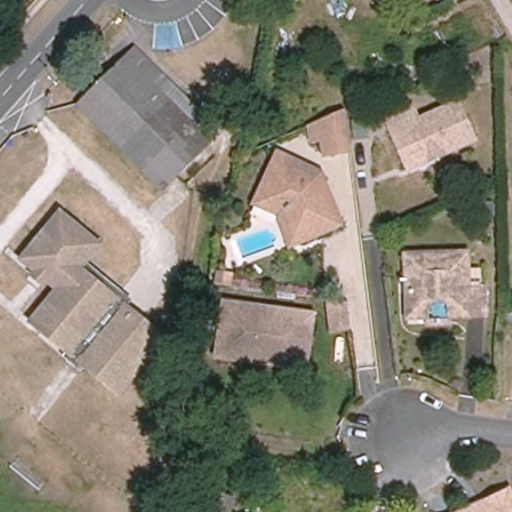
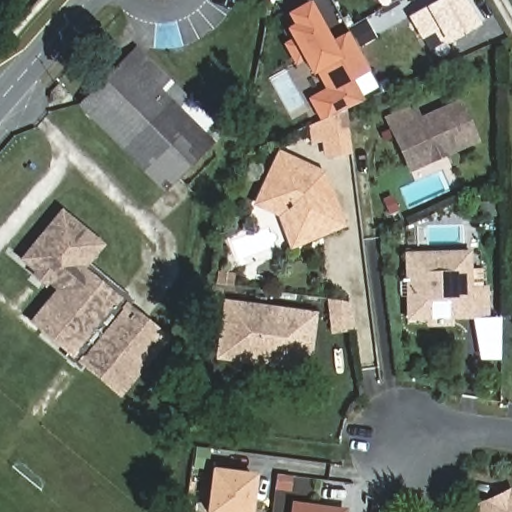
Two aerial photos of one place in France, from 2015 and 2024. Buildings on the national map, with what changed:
new [(458,0),(473,25),(446,41),(438,40),(432,30),(419,37),(407,16),(433,0),(458,0)]
new [(350,79),(362,101),(321,120),(311,100),(329,90),(317,69),(312,71),(304,57),(296,61),(287,44),(295,40),(289,29),(296,25),(290,13),(309,3),(331,44),(350,33),(369,68),(350,79)]
unchanged [(138,50),(171,84),(163,92),(212,143),(164,191),(81,106),(138,50)]
unchanged [(405,160),(386,116),(413,105),(419,119),(458,101),(474,139),(444,152),(408,167),(405,160)]
demolished [(325,154),(321,120),(345,110),(349,151),(325,154)]
new [(321,120),(345,110),(349,151),(325,154),(321,120)]
unchanged [(255,195),(283,148),(314,166),(323,172),(326,182),(339,225),(286,241),(276,208),(255,195)]
unchanged [(61,210),(98,241),(79,264),(161,335),(116,388),(34,318),(61,286),(24,254),(61,210)]
unchanged [(401,255),(463,254),(463,290),(480,290),(480,317),(442,318),(442,307),(437,303),(429,303),(424,308),(425,318),(402,319),(402,295),(402,282),(401,255)]
unchanged [(217,309),(302,306),(303,348),(219,351),(217,309)]
unchanged [(350,327),(333,330),(329,308),(347,307),(350,327)]
unchanged [(303,348),(303,353),(303,363),(266,364),(219,366),(219,351),(303,348)]
new [(212,468),(257,474),(253,512),(206,512),(212,468)]
unchanged [(510,487),(512,491),(512,512),(456,512),(510,487)]
demolished [(218,493),(237,499),(233,512),(212,512),(218,493)]
new [(293,501),(347,508),(346,512),(291,512),(293,501)]

